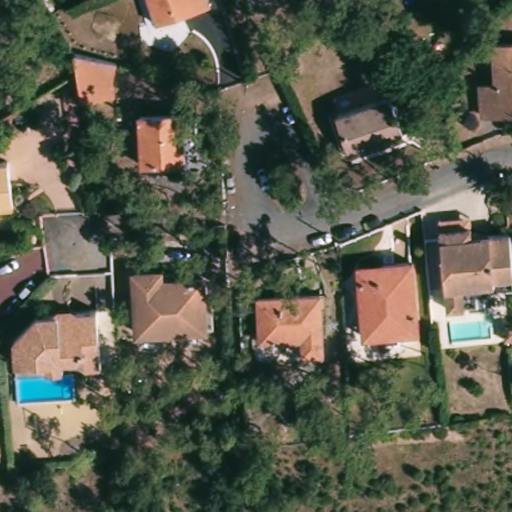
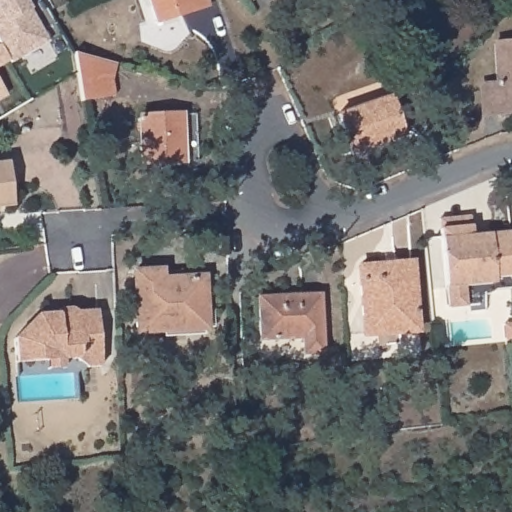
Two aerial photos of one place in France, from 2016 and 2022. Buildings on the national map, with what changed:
new [(9,60),(0,45),(0,0),(24,0),(47,42),(9,60)]
unchanged [(145,0),(201,0),(151,17),(145,0)]
unchanged [(479,113),(476,83),(492,81),(489,43),(512,42),(512,111),(479,113)]
new [(0,65),(0,45),(9,60),(0,65)]
unchanged [(73,48),(116,59),(112,75),(115,91),(81,97),(76,69),(73,48)]
new [(0,98),(0,83),(6,95),(0,98)]
unchanged [(348,140),(336,102),(389,86),(404,131),(368,141),(350,146),(348,140)]
unchanged [(182,109),(184,128),(196,126),(198,156),(141,159),(138,111),(182,109)]
unchanged [(4,204),(0,204),(0,161),(1,161),(4,204)]
unchanged [(509,232),(512,258),(512,275),(493,277),(493,282),(445,287),(439,228),(438,218),(469,216),(470,225),(471,235),(509,232)]
unchanged [(362,318),(359,263),(412,260),(416,330),(396,330),(363,332),(362,318)]
unchanged [(155,265),(156,275),(199,272),(202,323),(132,327),(128,267),(155,265)]
unchanged [(493,282),(493,277),(512,275),(512,287),(494,289),(491,294),(484,295),(484,303),(447,307),(445,287),(493,282)]
unchanged [(319,290),(321,349),(301,350),(300,333),(258,335),(257,293),(319,290)]
unchanged [(14,331),(35,313),(58,309),(97,309),(100,363),(50,365),(49,361),(16,360),(14,331)]
unchanged [(512,323),(512,338),(504,338),(503,324),(512,323)]

